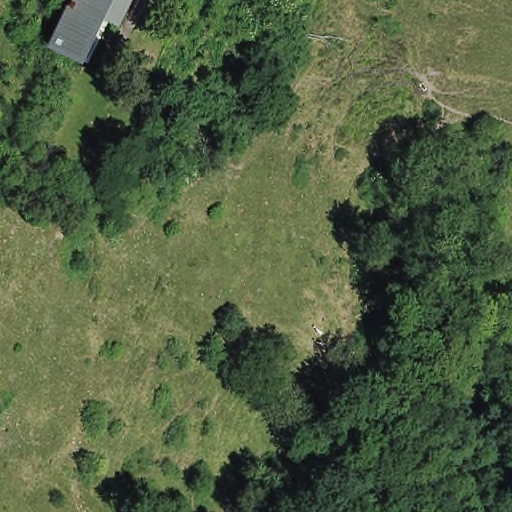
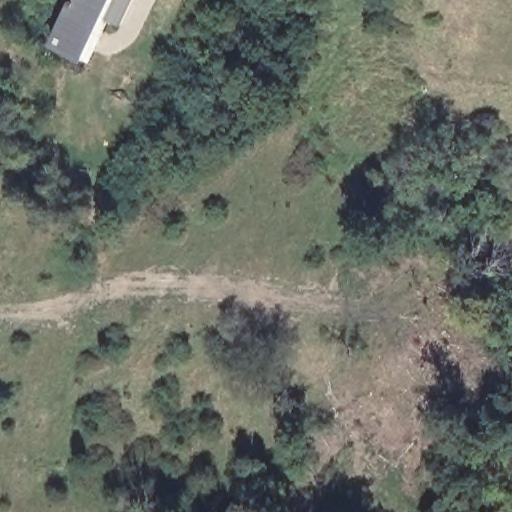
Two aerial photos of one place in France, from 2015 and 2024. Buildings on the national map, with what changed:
unchanged [(111,11),(90,51),(58,35),(74,0),(136,0),(128,19),(111,11)]

